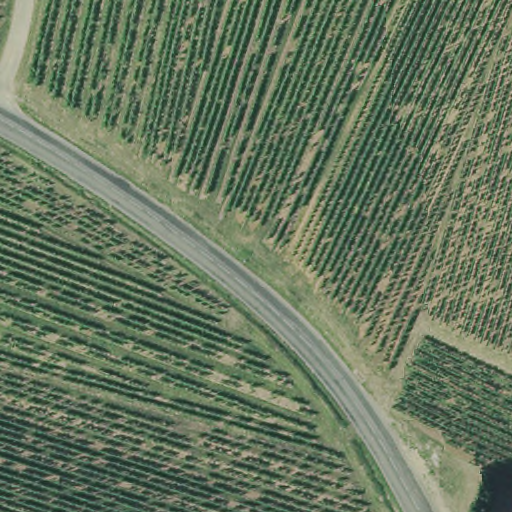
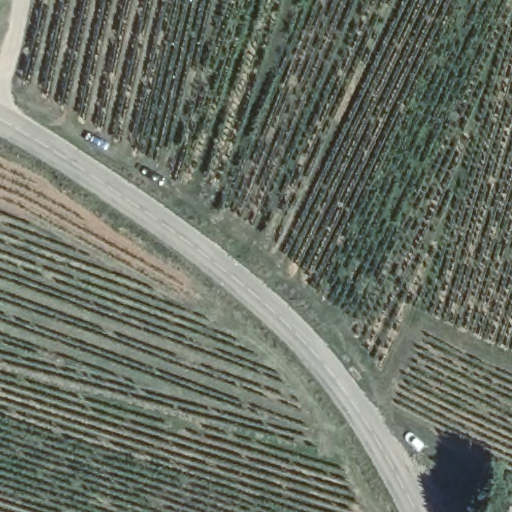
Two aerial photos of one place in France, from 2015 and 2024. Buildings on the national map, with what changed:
unchanged [(484,467),(510,480),(495,512),(466,512),(484,467)]

